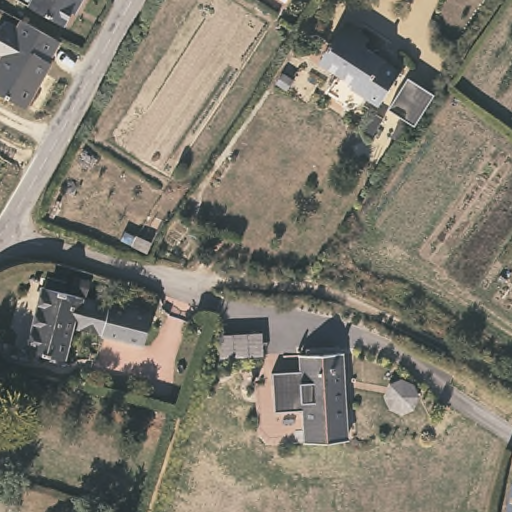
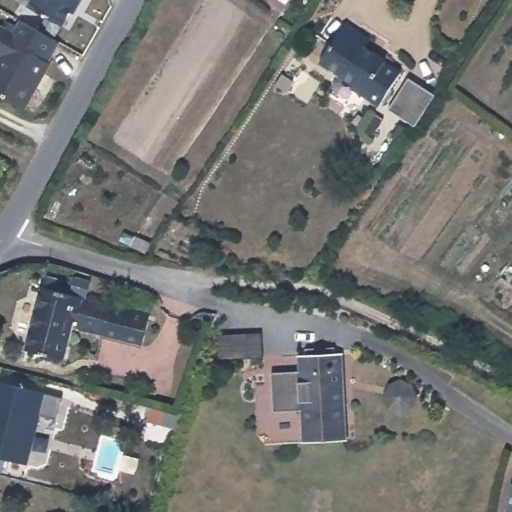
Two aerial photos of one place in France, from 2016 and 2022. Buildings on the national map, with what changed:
unchanged [(62,24),(28,5),(30,0),(80,0),(75,1),(62,24)]
unchanged [(48,59),(51,61),(24,107),(0,93),(0,57),(2,55),(0,54),(0,26),(13,33),(21,19),(26,21),(59,40),(48,59)]
unchanged [(372,38),(367,46),(389,59),(387,61),(403,71),(381,104),(352,86),(354,82),(322,60),(347,23),(364,33),(372,38)]
unchanged [(438,94),(417,125),(391,108),(411,76),(438,94)]
unchanged [(150,241),(146,252),(131,247),(136,236),(150,241)]
unchanged [(144,308),(137,341),(73,326),(75,316),(70,315),(60,357),(51,355),(50,359),(36,355),(38,350),(20,346),(37,282),(144,308)]
unchanged [(342,440),(300,442),(295,357),(338,356),(342,440)]
new [(62,398),(56,419),(38,415),(25,464),(0,457),(0,381),(62,398)]
unchanged [(512,512),(500,512),(504,483),(512,486),(512,512)]

